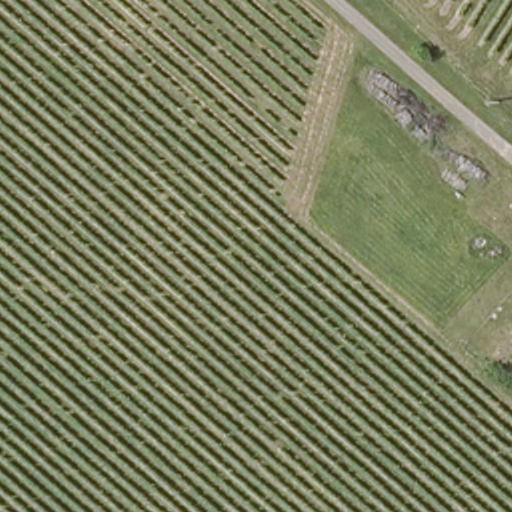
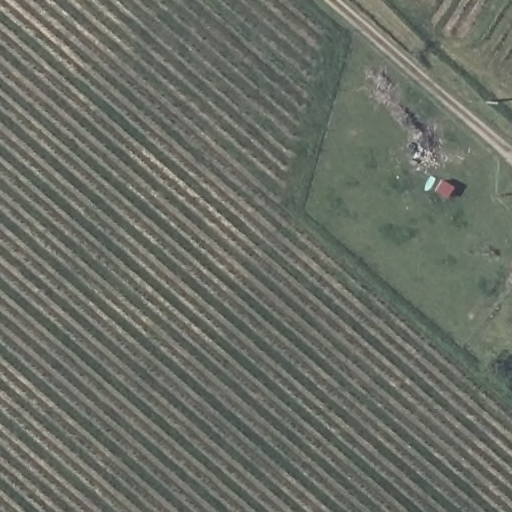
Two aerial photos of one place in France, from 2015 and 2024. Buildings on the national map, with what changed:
[]

